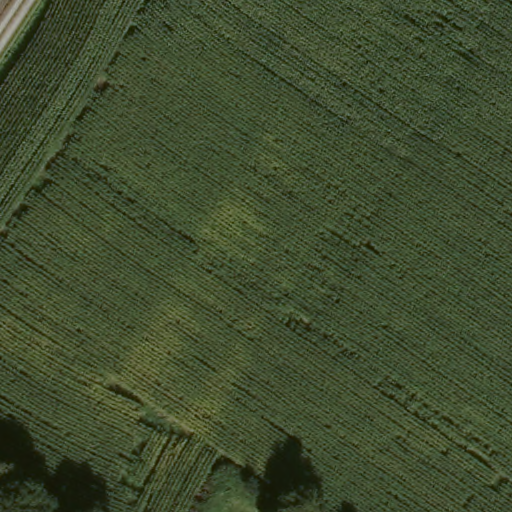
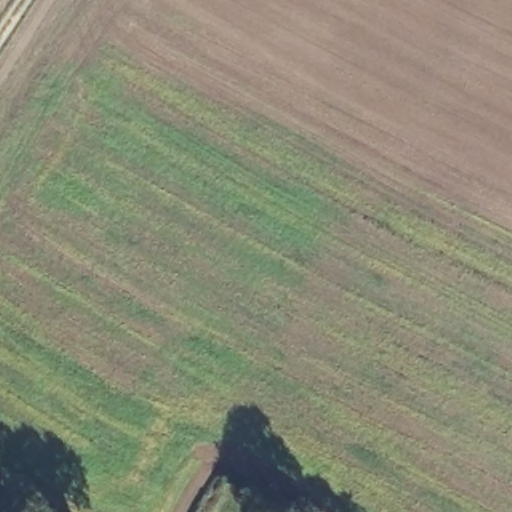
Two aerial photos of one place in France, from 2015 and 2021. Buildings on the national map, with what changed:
[]

